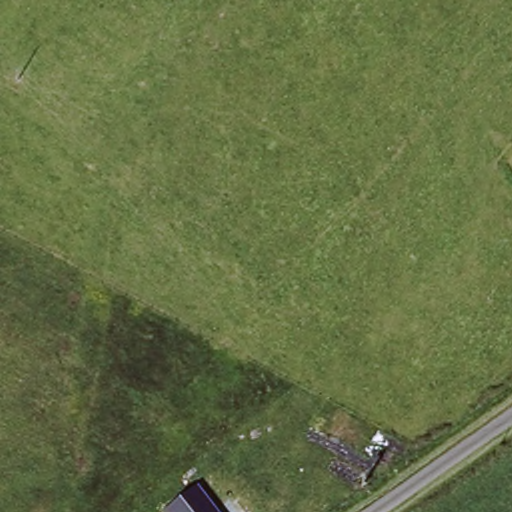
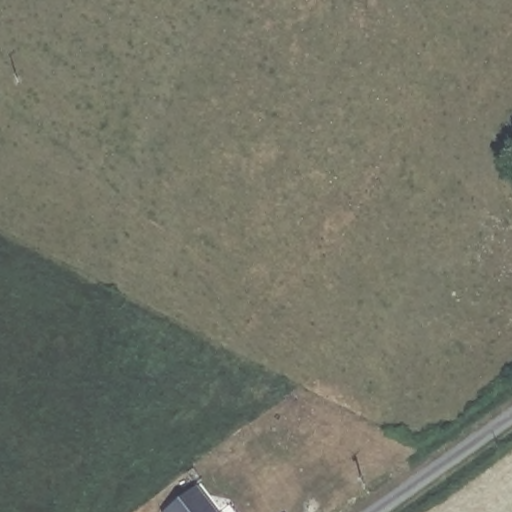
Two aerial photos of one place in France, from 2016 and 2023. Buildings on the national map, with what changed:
unchanged [(219,512),(164,512),(164,511),(198,484),(219,512)]

